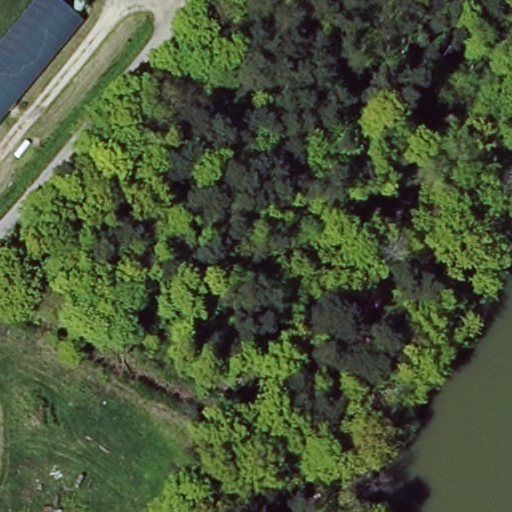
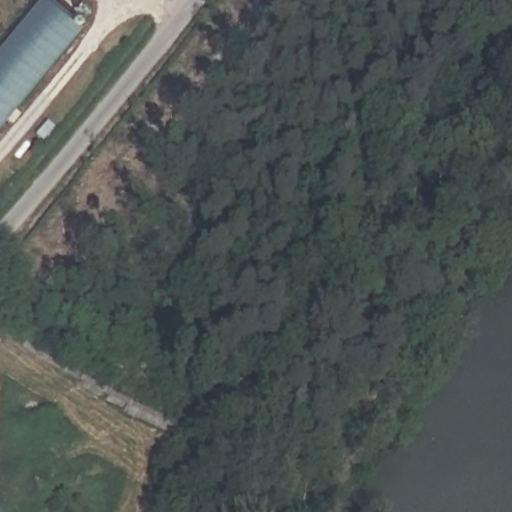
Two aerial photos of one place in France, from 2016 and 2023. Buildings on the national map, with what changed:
unchanged [(43,0),(75,26),(22,91),(0,118),(0,41),(33,0),(43,0)]

